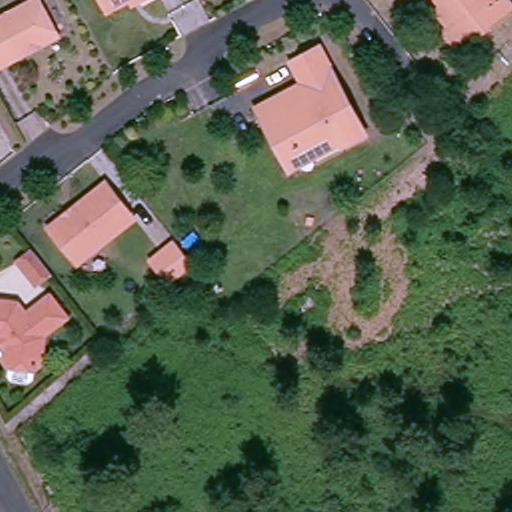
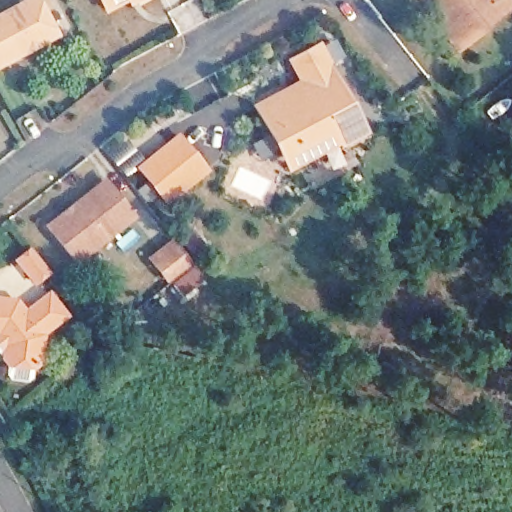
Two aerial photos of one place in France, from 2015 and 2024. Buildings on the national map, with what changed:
unchanged [(27,0),(36,0),(55,35),(0,64),(0,15),(27,0)]
unchanged [(103,14),(96,0),(142,0),(128,7),(125,2),(103,14)]
unchanged [(448,1),(447,0),(510,0),(512,3),(512,9),(478,35),(460,50),(445,32),(452,26),(439,10),(448,1)]
unchanged [(302,85),(290,61),(319,46),(361,129),(362,130),(355,135),(340,141),(333,129),(287,152),(263,106),(302,85)]
unchanged [(340,141),(286,170),(255,110),(263,106),(287,152),(333,129),(340,141)]
new [(165,205),(136,167),(179,134),(208,171),(165,205)]
unchanged [(102,182),(131,217),(75,263),(46,228),(102,182)]
unchanged [(175,239),(193,263),(170,281),(151,258),(175,239)]
unchanged [(31,254),(38,263),(48,276),(34,286),(17,265),(31,254)]
unchanged [(29,377),(13,375),(10,370),(10,360),(5,353),(4,355),(0,349),(0,295),(19,297),(27,309),(52,290),(69,312),(45,330),(45,331),(42,358),(35,363),(33,373),(29,377)]

